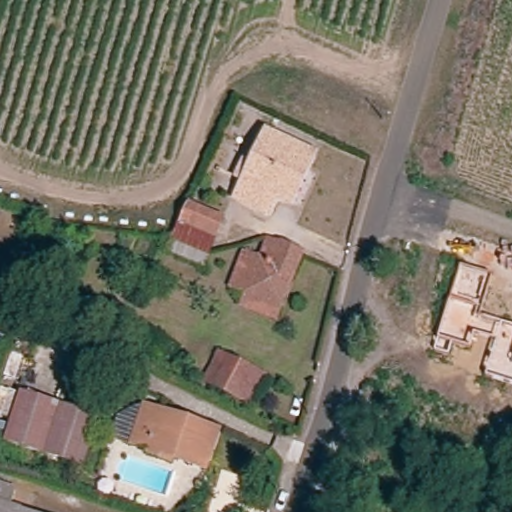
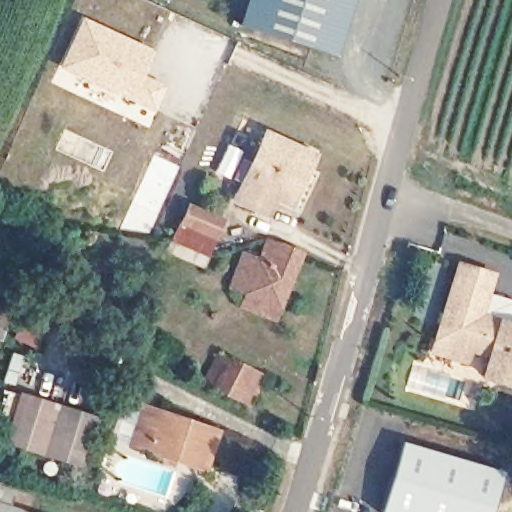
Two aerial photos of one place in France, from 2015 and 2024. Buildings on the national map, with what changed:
new [(165,0),(166,0),(166,1),(165,0)]
new [(239,27),(248,0),(355,0),(337,56),(239,27)]
new [(154,51),(144,75),(168,86),(156,112),(60,69),(82,17),(154,51)]
new [(317,154),(293,209),(278,203),(270,221),(231,202),(240,184),(234,181),(243,161),(249,164),(265,130),(317,154)]
demolished [(242,175),(233,172),(238,155),(251,157),(260,131),(305,147),(291,190),(271,186),(265,207),(262,206),(235,196),(242,175)]
unchanged [(226,224),(204,274),(163,259),(185,206),(226,224)]
unchanged [(253,315),(256,303),(231,293),(244,257),(262,263),(269,244),(303,256),(297,276),(281,313),(276,325),(253,315)]
new [(487,357),(472,351),(469,363),(431,353),(435,340),(458,259),(497,272),(491,293),(512,299),(512,387),(481,377),(487,357)]
unchanged [(263,381),(249,412),(219,400),(201,392),(215,360),(231,366),(263,381)]
unchanged [(97,419),(81,469),(10,447),(26,397),(97,419)]
unchanged [(152,471),(155,463),(155,462),(130,453),(144,411),(222,437),(208,480),(184,472),(181,481),(152,471)]
new [(504,473),(493,512),(382,512),(403,443),(504,473)]
unchanged [(23,494),(17,512),(0,512),(0,486),(23,494)]

